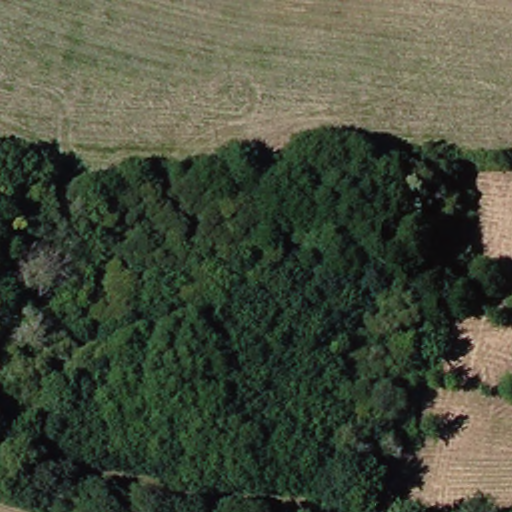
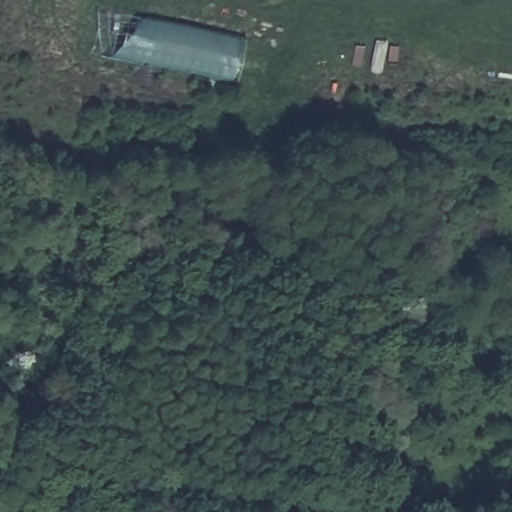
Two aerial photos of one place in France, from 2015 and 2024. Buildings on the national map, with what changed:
new [(244,40),(234,82),(113,57),(111,60),(120,15),(244,40)]

